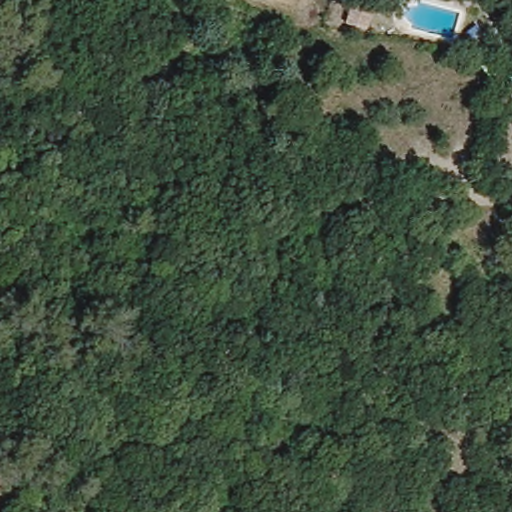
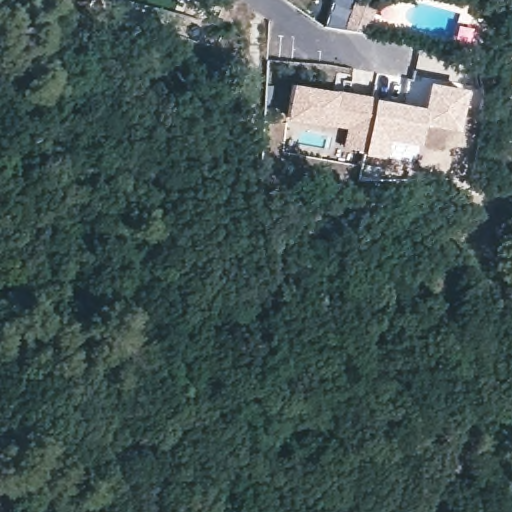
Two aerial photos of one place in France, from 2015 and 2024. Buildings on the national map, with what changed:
unchanged [(345,23),(357,0),(369,0),(378,4),(367,33),(345,23)]
new [(423,106),(427,81),(467,88),(459,130),(425,125),(420,144),(389,140),(386,158),(365,155),(365,151),(374,98),(423,106)]
new [(293,84),(374,98),(365,151),(347,148),(351,127),(288,116),(293,84)]

